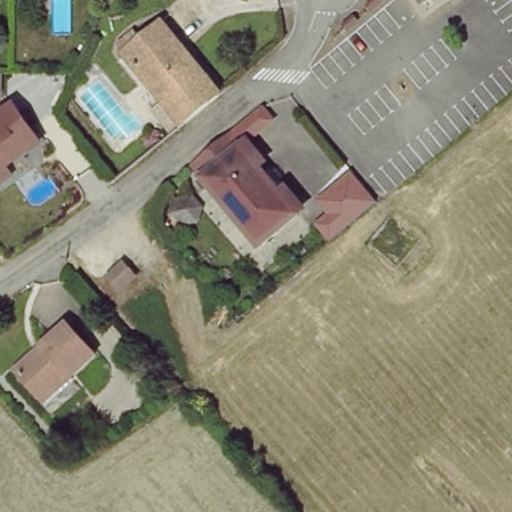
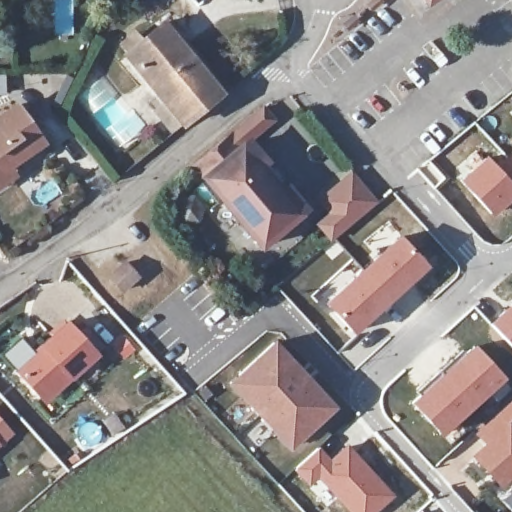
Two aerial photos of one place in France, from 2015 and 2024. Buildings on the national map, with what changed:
unchanged [(419,0),(434,0),(424,7),(419,0)]
unchanged [(164,27),(222,99),(183,130),(126,57),(164,27)]
unchanged [(17,101),(46,144),(14,167),(18,176),(0,188),(0,113),(17,101)]
unchanged [(197,168),(235,137),(265,175),(272,170),(277,174),(282,178),(285,183),(286,186),(285,189),(283,192),(280,193),(300,218),(262,250),(196,168),(197,168)]
new [(494,164),(504,156),(507,159),(512,154),(512,206),(508,210),(504,205),(493,215),(459,181),(484,155),(494,164)]
new [(329,241),(313,223),(327,212),(316,198),(351,169),(377,201),(329,241)]
demolished [(307,235),(336,211),(350,229),(318,257),(307,235)]
new [(398,233),(429,266),(352,335),(322,304),(398,233)]
unchanged [(135,278),(119,291),(109,278),(126,265),(135,278)]
unchanged [(37,402),(14,374),(66,330),(93,361),(70,382),(41,406),(37,402)]
new [(273,341),(336,408),(291,450),(228,382),(273,341)]
new [(471,345),(503,379),(439,435),(409,403),(471,345)]
new [(512,401),(512,418),(507,422),(512,427),(512,478),(502,488),(471,456),(486,443),(474,430),(510,398),(512,401)]
new [(330,457),(347,443),(394,495),(376,512),(347,512),(318,483),(311,489),(293,470),(319,446),(330,457)]

